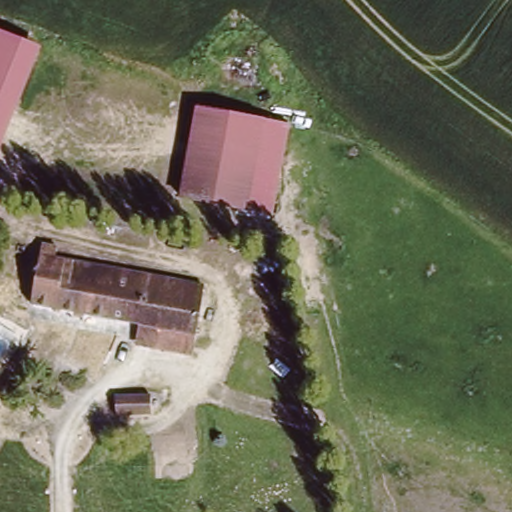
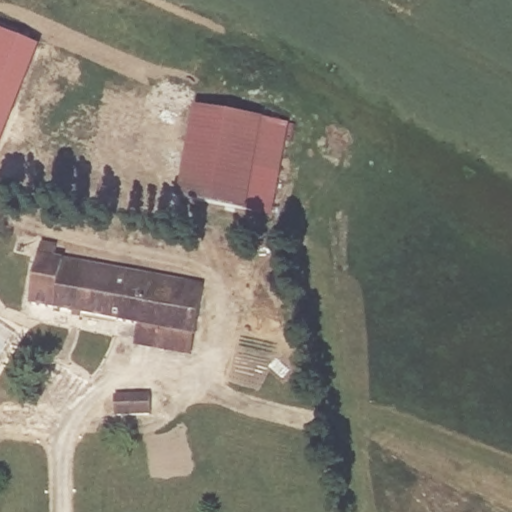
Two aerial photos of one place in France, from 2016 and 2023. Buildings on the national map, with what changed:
unchanged [(0,136),(0,31),(34,48),(0,136)]
unchanged [(247,211),(180,200),(197,109),(263,122),(247,211)]
unchanged [(263,122),(287,127),(272,216),(247,211),(263,122)]
unchanged [(43,244),(55,246),(54,257),(202,286),(204,287),(195,350),(134,340),(135,321),(33,303),(43,244)]
unchanged [(149,394),(151,394),(152,394),(152,415),(119,416),(117,394),(149,394)]

